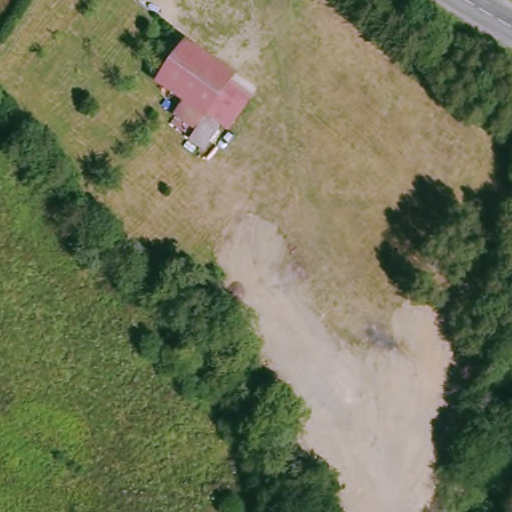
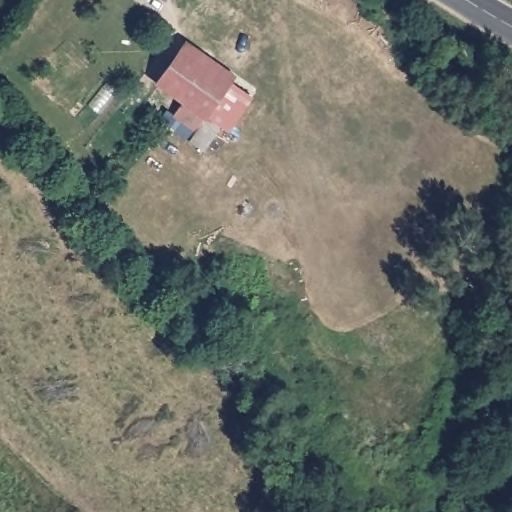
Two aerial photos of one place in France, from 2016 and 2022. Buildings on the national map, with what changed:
unchanged [(233,83),(200,130),(184,118),(192,105),(166,84),(191,49),(231,81),(233,83)]
unchanged [(233,83),(245,93),(206,152),(193,141),(200,130),(233,83)]

